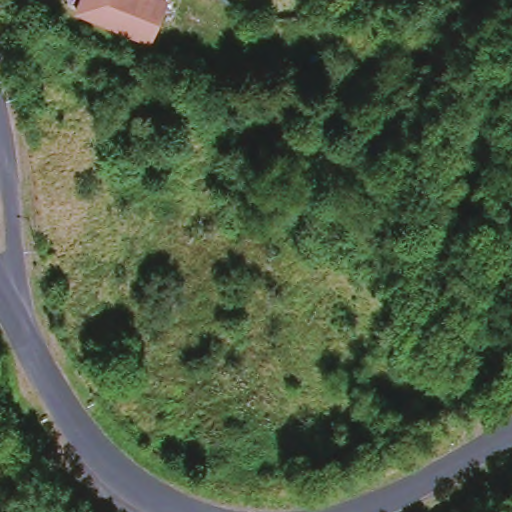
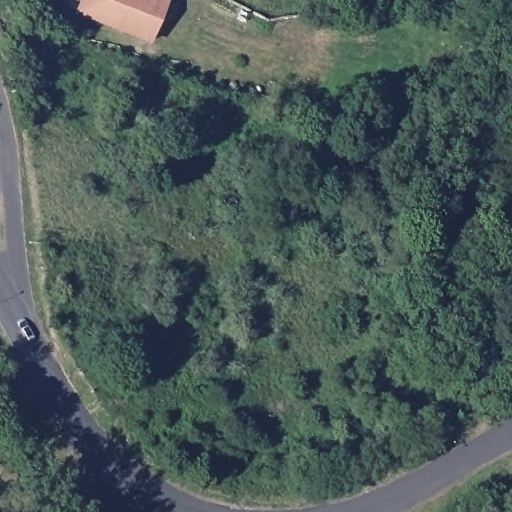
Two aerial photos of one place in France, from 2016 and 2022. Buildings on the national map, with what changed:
unchanged [(74,13),(79,0),(146,0),(133,35),(74,13)]

